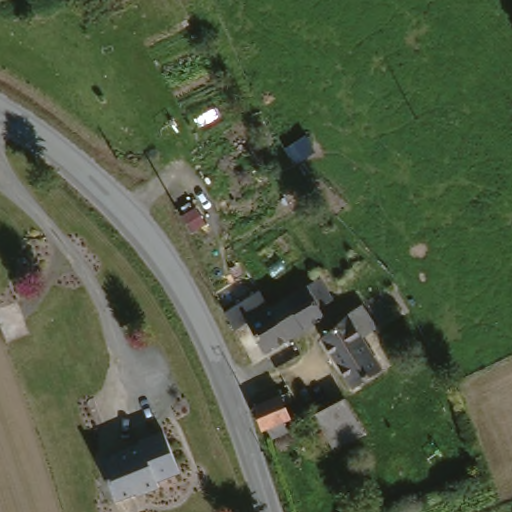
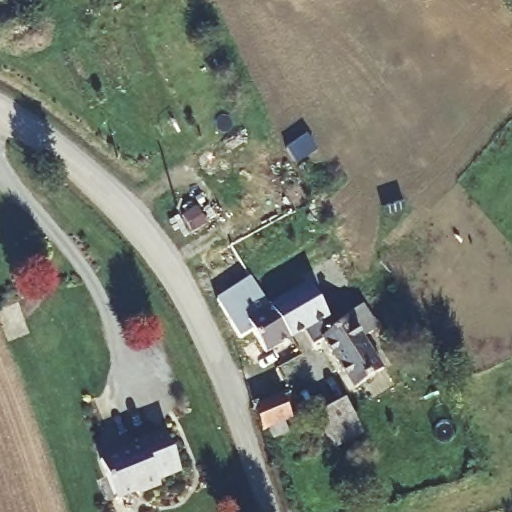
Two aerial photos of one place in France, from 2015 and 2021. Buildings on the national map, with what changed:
unchanged [(187,213),(204,204),(213,222),(196,231),(187,213)]
unchanged [(336,299),(323,306),(327,316),(291,336),(272,304),(323,276),(336,299)]
unchanged [(291,336),(267,349),(250,319),(236,325),(231,306),(263,289),(272,304),(291,336)]
unchanged [(368,299),(378,319),(365,329),(383,361),(356,380),(326,329),(368,299)]
unchanged [(279,398),(288,419),(281,421),(285,431),(272,437),(268,427),(262,430),(254,408),(279,398)]
unchanged [(344,403),(361,432),(331,449),(316,419),(344,403)]
unchanged [(140,437),(165,428),(179,468),(156,477),(157,483),(142,489),(140,486),(114,495),(99,455),(141,440),(140,437)]

